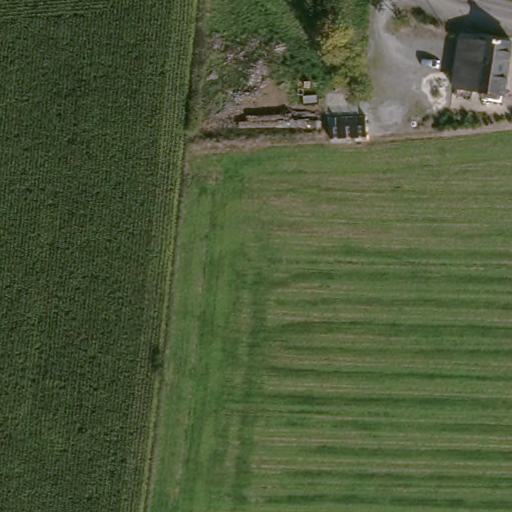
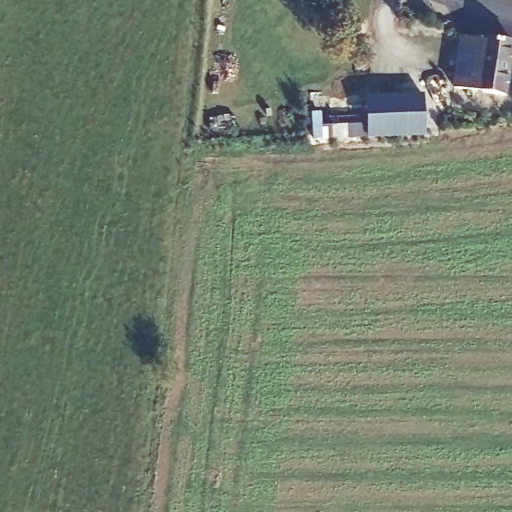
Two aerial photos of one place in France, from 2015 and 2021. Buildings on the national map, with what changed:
unchanged [(475,45),(475,37),(508,44),(506,77),(512,77),(512,91),(500,94),(456,91),(459,45),(475,45)]
new [(330,125),(366,124),(366,95),(423,94),(425,136),(366,137),(331,136),(330,125)]

